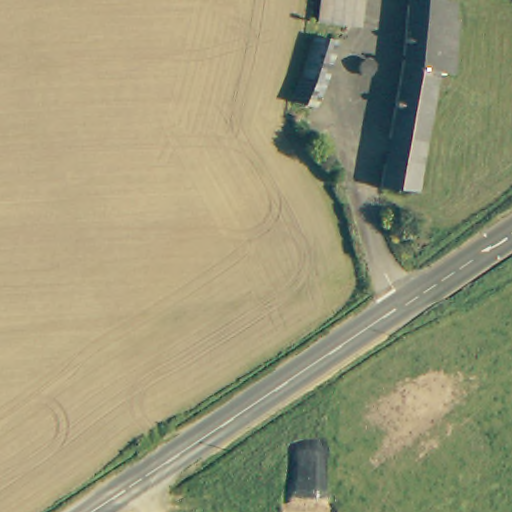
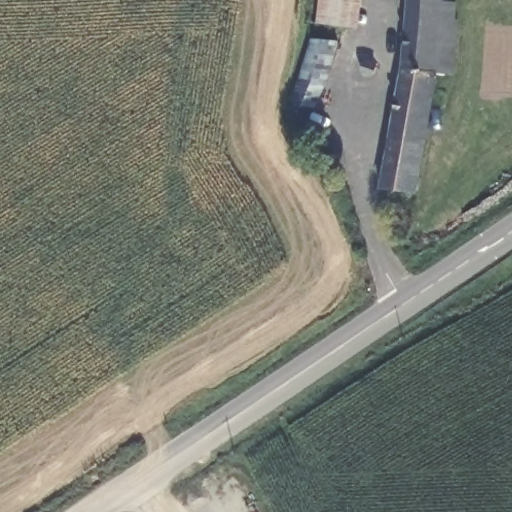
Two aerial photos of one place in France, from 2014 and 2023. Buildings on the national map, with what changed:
unchanged [(315,24),(318,0),(363,0),(359,29),(327,25),(315,24)]
unchanged [(456,19),(462,19),(454,72),(437,72),(417,191),(380,190),(399,71),(406,0),(457,0),(456,19)]
unchanged [(339,42),(331,76),(315,111),(291,103),(307,66),(315,42),(326,41),(339,42)]
unchanged [(375,66),(374,79),(357,74),(364,63),(372,63),(375,66)]

